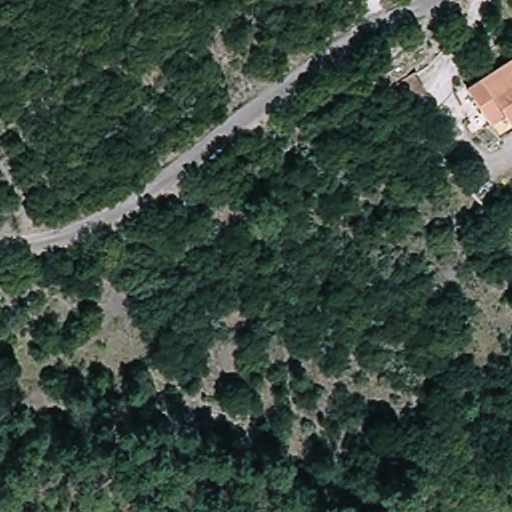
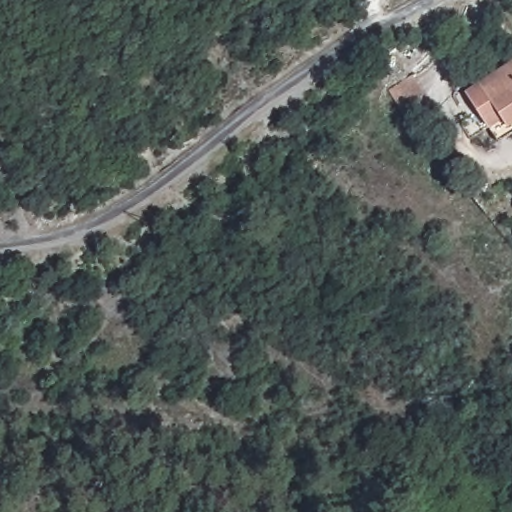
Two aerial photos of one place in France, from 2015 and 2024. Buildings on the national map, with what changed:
unchanged [(489,126),(466,95),(510,57),(512,59),(512,131),(500,141),(489,126)]

